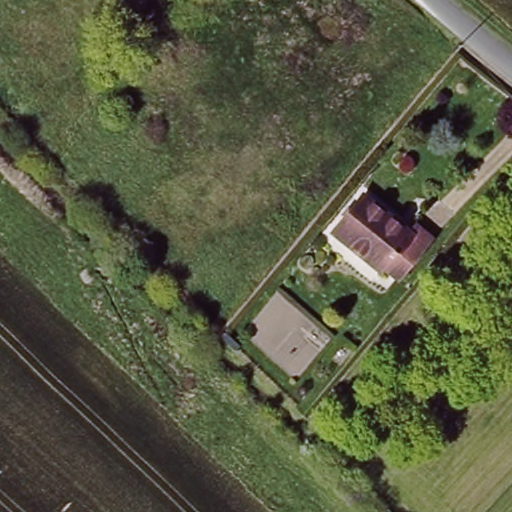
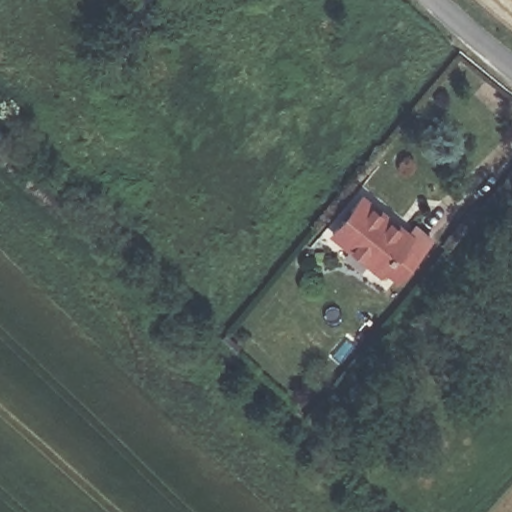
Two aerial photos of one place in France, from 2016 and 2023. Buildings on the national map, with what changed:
unchanged [(354,198),(398,236),(404,229),(419,242),(390,276),(374,263),(367,269),(324,232),(354,198)]

